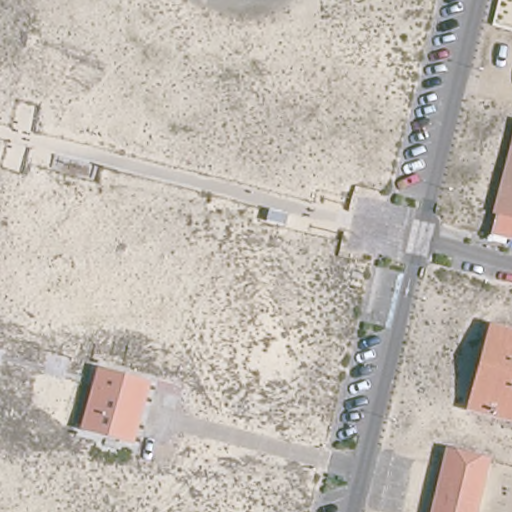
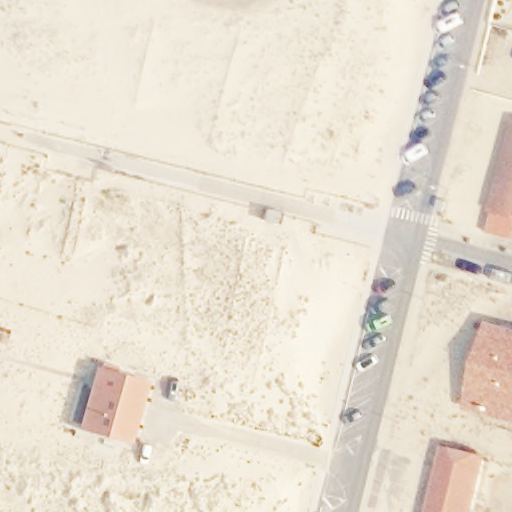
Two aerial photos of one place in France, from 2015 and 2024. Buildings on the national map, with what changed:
unchanged [(512,152),(512,208),(499,204),(512,152)]
unchanged [(492,229),(499,204),(512,208),(512,235),(492,229)]
unchanged [(491,331),(496,313),(512,318),(512,406),(481,397),(473,394),(491,331)]
unchanged [(139,438),(95,425),(89,423),(99,392),(106,366),(156,380),(150,401),(144,419),(139,438)]
unchanged [(450,460),(452,451),(493,461),(481,512),(438,512),(441,497),(450,460)]

